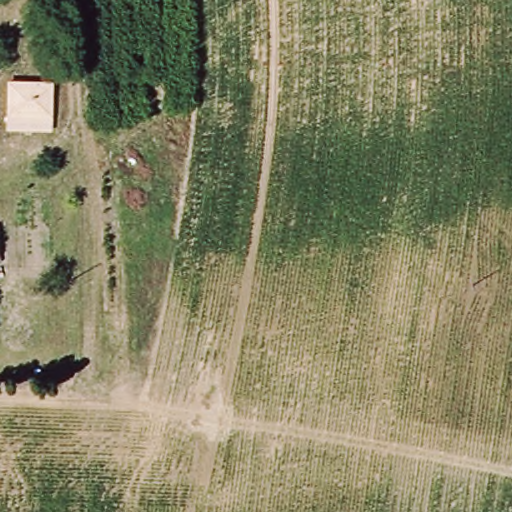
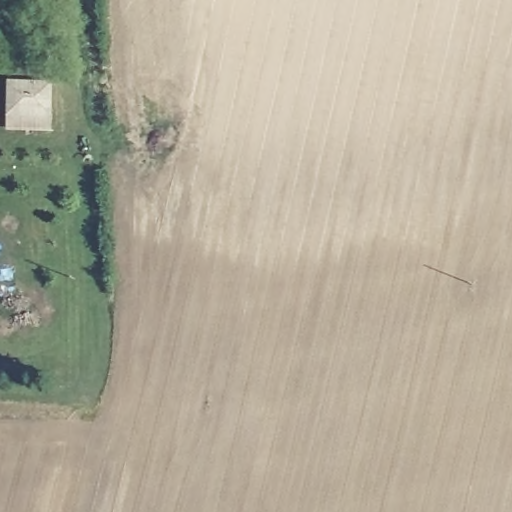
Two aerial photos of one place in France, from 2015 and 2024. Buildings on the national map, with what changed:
unchanged [(49,78),(50,109),(6,110),(6,79),(49,78)]

